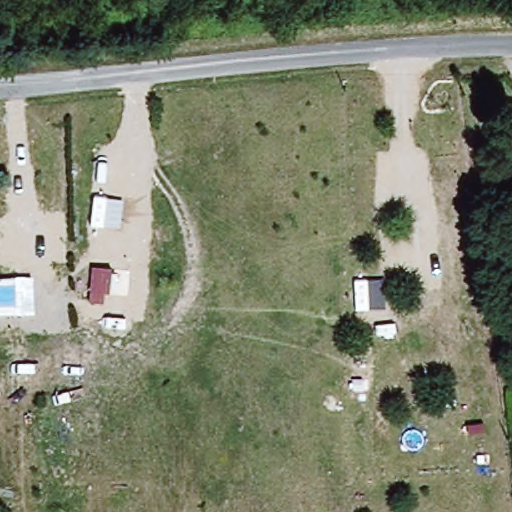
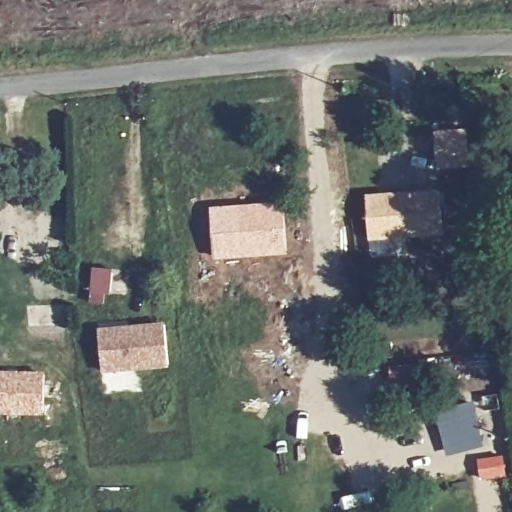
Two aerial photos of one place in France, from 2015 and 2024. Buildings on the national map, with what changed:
new [(439,189),(442,233),(367,239),(365,194),(439,189)]
new [(283,199),(287,254),(212,259),(208,206),(283,199)]
unchanged [(115,267),(112,299),(90,295),(92,265),(115,267)]
demolished [(17,278),(17,314),(0,314),(0,279),(17,278)]
new [(165,362),(98,369),(94,329),(160,323),(165,362)]
new [(38,410),(0,410),(0,372),(39,373),(38,410)]
new [(447,456),(435,413),(473,403),(486,445),(447,456)]

